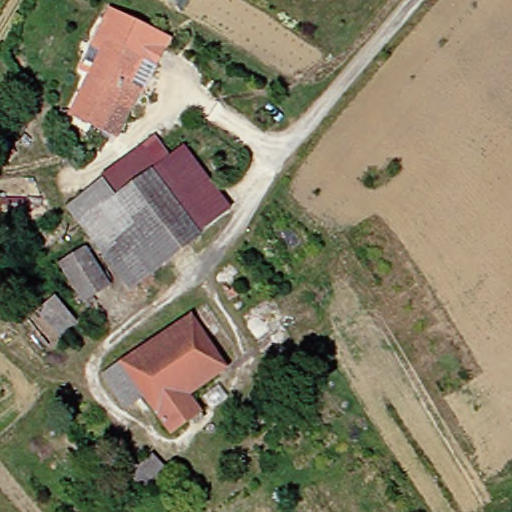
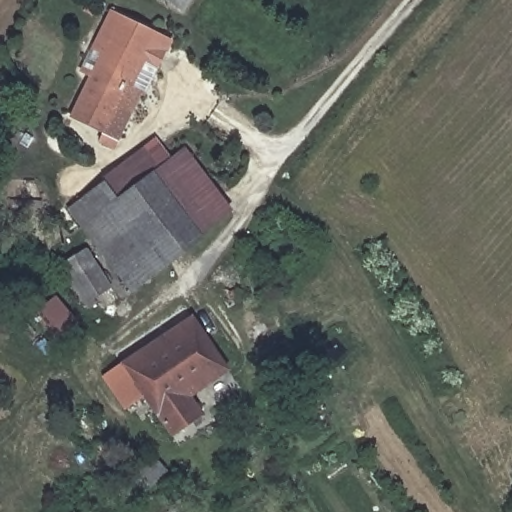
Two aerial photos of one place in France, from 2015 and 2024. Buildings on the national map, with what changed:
unchanged [(120,19),(177,48),(162,75),(146,68),(135,90),(148,98),(123,145),(80,121),(108,61),(98,56),(120,19)]
unchanged [(80,210),(110,188),(124,205),(162,173),(188,151),(237,210),(202,238),(208,245),(195,255),(190,249),(155,197),(100,234),(80,210)]
unchanged [(148,156),(162,173),(124,205),(110,188),(148,156)]
unchanged [(100,234),(155,197),(190,249),(195,255),(177,270),(158,246),(135,264),(128,270),(116,254),(100,234)]
unchanged [(62,231),(3,231),(3,202),(65,201),(62,231)]
unchanged [(96,254),(122,287),(96,305),(72,273),(96,254)]
unchanged [(210,309),(225,315),(245,347),(255,362),(240,376),(201,402),(213,422),(183,444),(157,403),(140,414),(115,377),(210,309)]
unchanged [(152,457),(162,471),(140,491),(129,477),(152,457)]

